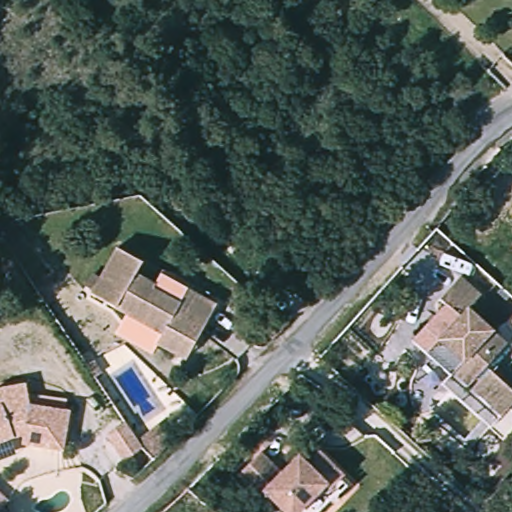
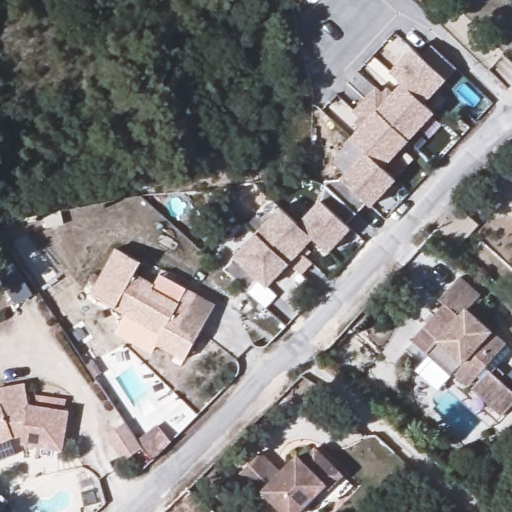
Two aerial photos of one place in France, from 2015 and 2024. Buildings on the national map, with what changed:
new [(447,81),(424,104),(436,113),(384,169),(397,179),(372,207),(364,200),(344,223),(351,229),(329,254),(312,239),(304,247),(310,252),(306,257),(311,263),(300,276),(287,264),(266,288),(233,258),(253,235),(279,207),(297,223),(319,201),(324,182),(341,178),(364,151),(349,138),(400,83),(388,73),(412,48),(420,55),(431,45),(456,69),(447,81)]
new [(478,227),(459,248),(436,228),(454,206),(478,227)]
unchanged [(147,341),(154,330),(88,285),(111,251),(117,243),(142,259),(133,271),(150,282),(159,270),(211,306),(196,328),(174,359),(147,341)]
unchanged [(480,293),(466,309),(473,315),(467,321),(498,349),(484,365),(512,391),(512,402),(503,412),(474,386),(479,380),(474,376),(469,382),(454,367),(462,359),(424,325),(445,302),(440,296),(461,275),(480,293)]
new [(154,330),(147,341),(156,347),(151,355),(114,335),(125,310),(154,330)]
unchanged [(68,407),(63,446),(22,441),(23,433),(15,435),(0,441),(0,385),(25,381),(28,401),(68,407)]
unchanged [(128,458),(114,438),(136,422),(151,443),(128,458)]
unchanged [(151,444),(169,427),(179,438),(159,456),(151,444)]
unchanged [(281,472),(298,455),(303,460),(316,448),(342,475),(328,488),(324,485),(296,512),(284,512),(263,490),(258,496),(236,474),(260,451),(281,472)]
unchanged [(0,504),(0,494),(5,498),(0,504)]

